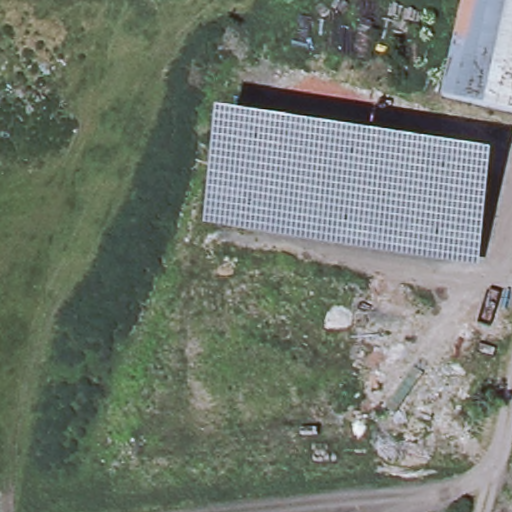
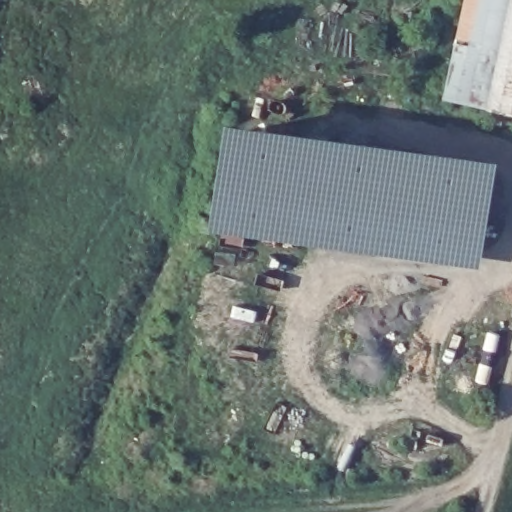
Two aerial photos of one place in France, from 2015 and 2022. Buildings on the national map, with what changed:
unchanged [(461,0),(512,0),(512,117),(440,100),(461,0)]
unchanged [(492,169),(477,266),(209,227),(223,127),(492,169)]

